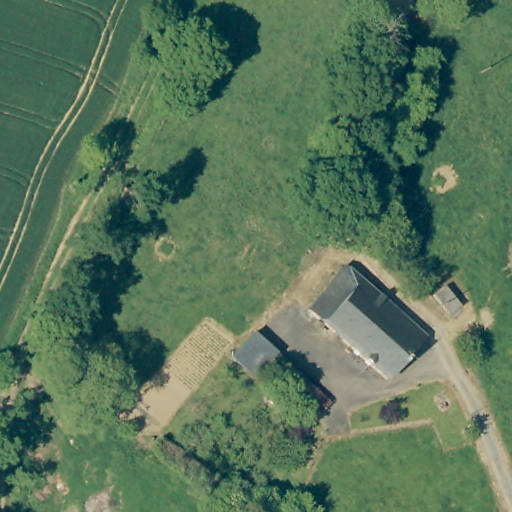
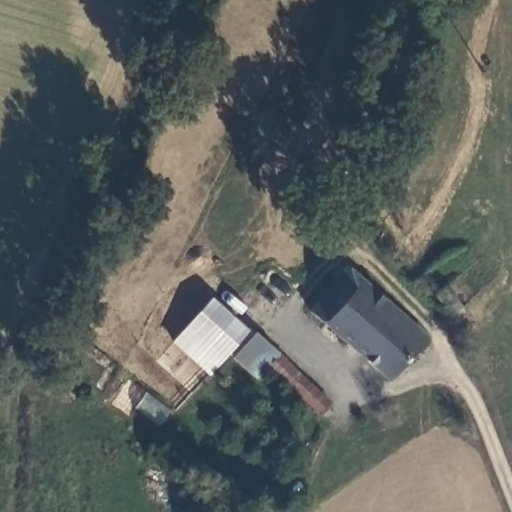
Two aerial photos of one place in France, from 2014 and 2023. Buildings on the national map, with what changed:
unchanged [(424,338),(384,380),(303,310),(329,281),(332,271),(340,264),(424,338)]
new [(208,376),(170,342),(209,296),(247,330),(208,376)]
unchanged [(330,400),(316,413),(294,391),(279,405),(229,361),(253,330),(330,400)]

